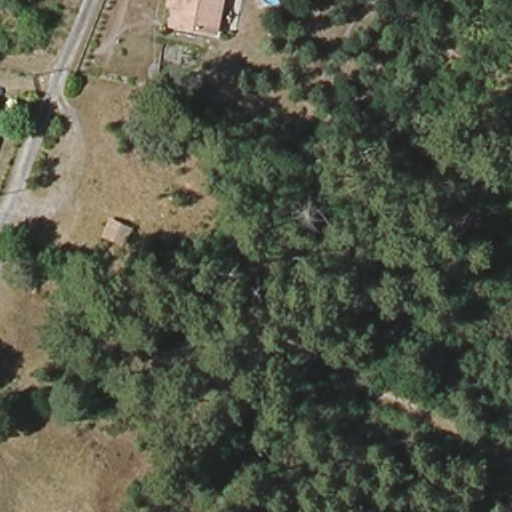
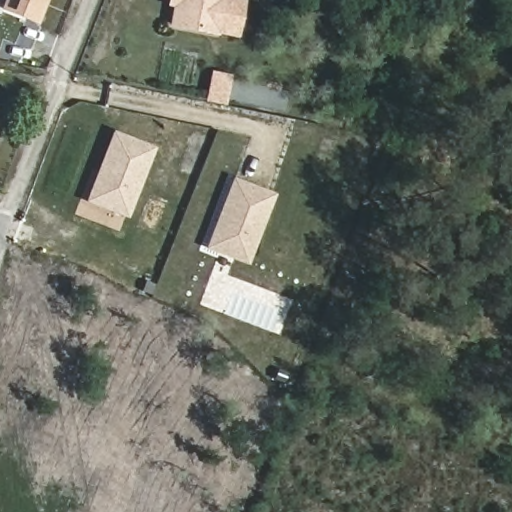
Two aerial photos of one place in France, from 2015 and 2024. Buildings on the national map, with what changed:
new [(37,25),(0,11),(0,6),(2,0),(47,0),(37,25)]
unchanged [(169,0),(221,0),(214,35),(169,26),(173,7),(168,6),(169,0)]
new [(224,107),(203,102),(210,71),(231,76),(224,107)]
new [(84,202),(111,130),(155,147),(127,220),(84,202)]
new [(204,248),(232,177),(276,195),(247,266),(209,250),(204,248)]
demolished [(129,228),(134,216),(152,223),(147,236),(129,228)]

